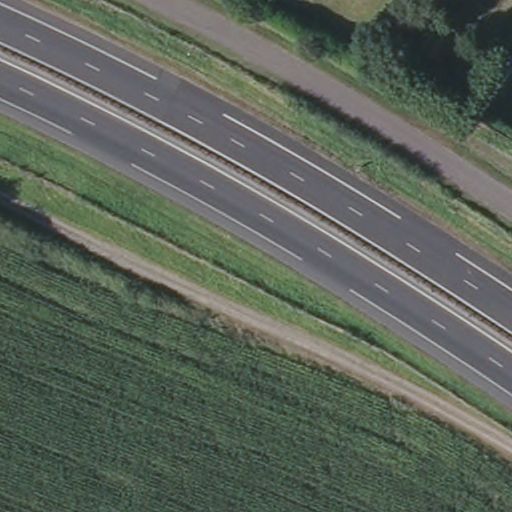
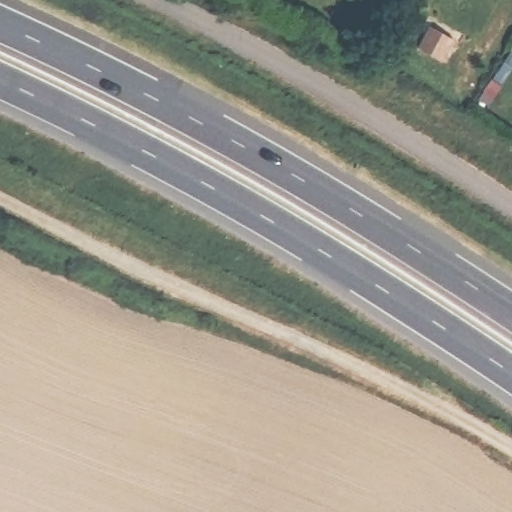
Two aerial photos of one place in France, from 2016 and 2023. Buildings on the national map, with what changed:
unchanged [(457,41),(443,62),(419,45),(434,26),(457,41)]

